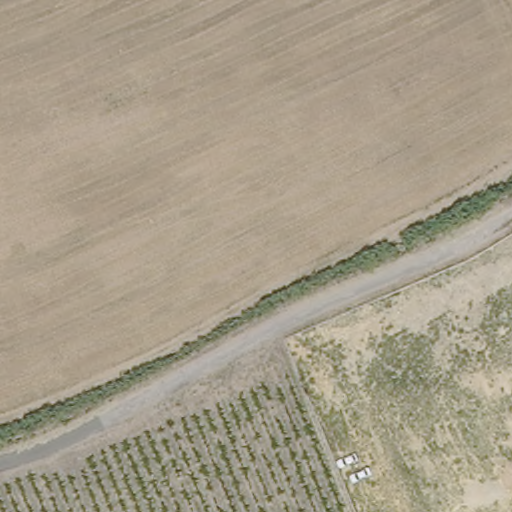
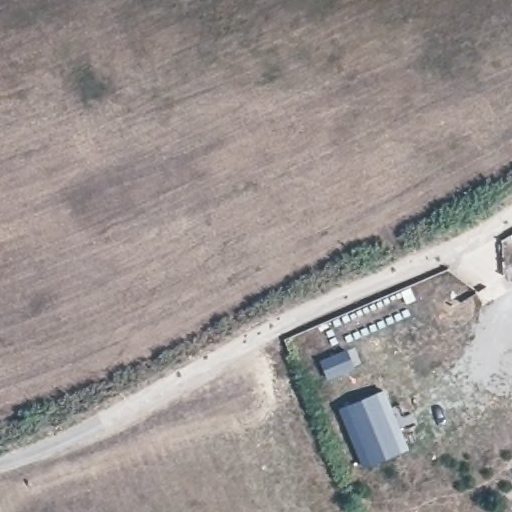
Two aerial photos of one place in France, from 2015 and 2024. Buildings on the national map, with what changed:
new [(351,353),(358,372),(330,382),(323,363),(351,353)]
new [(410,449),(364,467),(341,408),(386,390),(410,449)]

